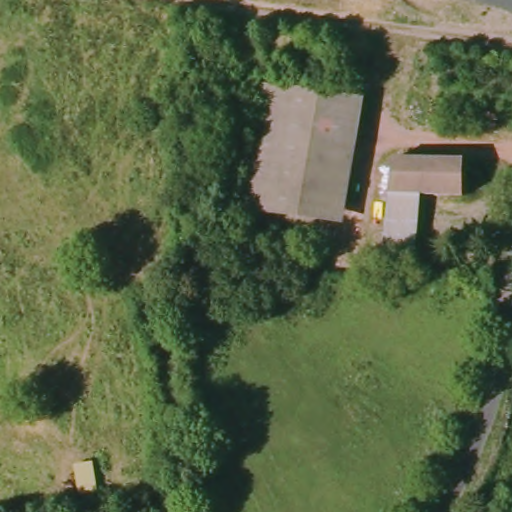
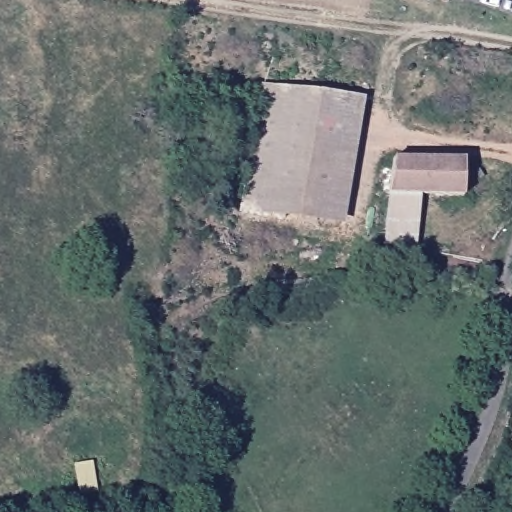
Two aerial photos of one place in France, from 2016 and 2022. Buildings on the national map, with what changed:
unchanged [(237,210),(257,86),(359,96),(345,220),(237,210)]
unchanged [(395,159),(464,165),(461,202),(420,199),(391,196),(395,159)]
unchanged [(420,199),(415,248),(385,245),(391,196),(420,199)]

